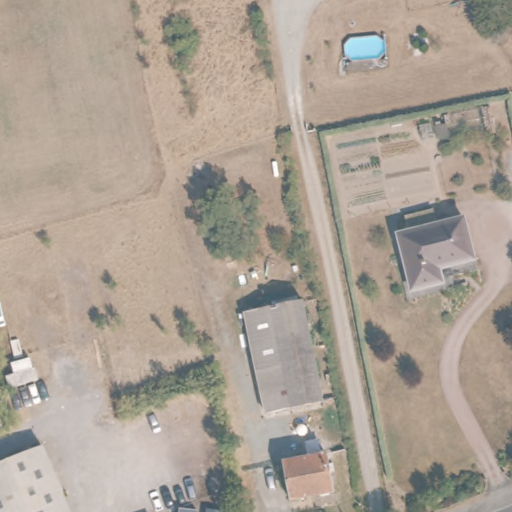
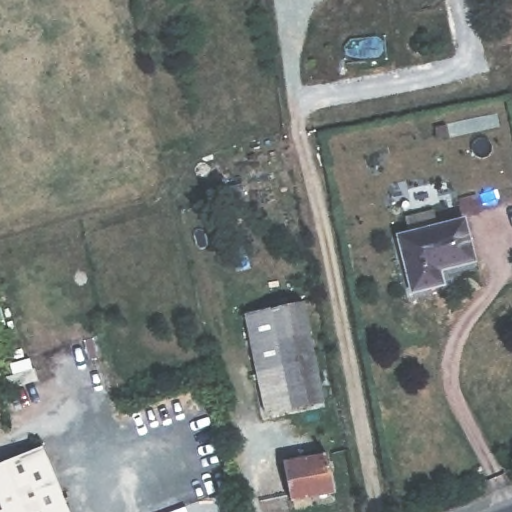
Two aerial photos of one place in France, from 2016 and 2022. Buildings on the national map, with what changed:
unchanged [(437,210),(441,224),(467,219),(475,262),(434,270),(437,286),(418,290),(407,270),(400,235),(412,232),(408,216),(437,210)]
unchanged [(301,302),(325,402),(266,415),(242,315),(301,302)]
unchanged [(67,512),(0,512),(0,467),(43,450),(67,512)]
unchanged [(328,457),(333,495),(290,501),(285,463),(328,457)]

